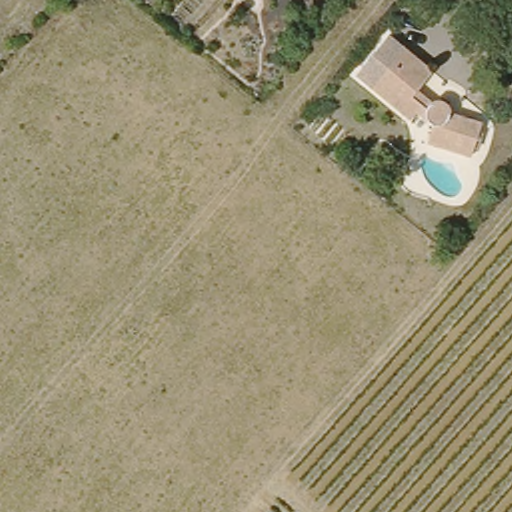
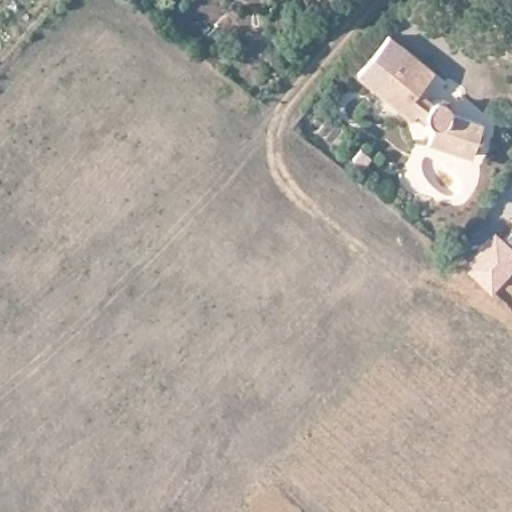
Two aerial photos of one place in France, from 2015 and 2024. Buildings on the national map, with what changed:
unchanged [(434,81),(442,82),(450,86),(456,92),(462,103),(492,112),(480,149),(433,134),(440,122),(418,105),(410,113),(368,79),(400,36),(433,61),(420,77),(427,83),(434,81)]
new [(503,235),(512,244),(512,267),(490,289),(461,263),(494,228),(503,235)]
new [(512,244),(505,238),(512,231),(512,244)]

